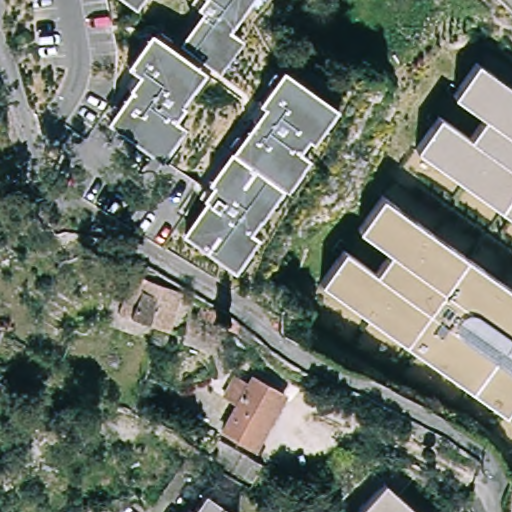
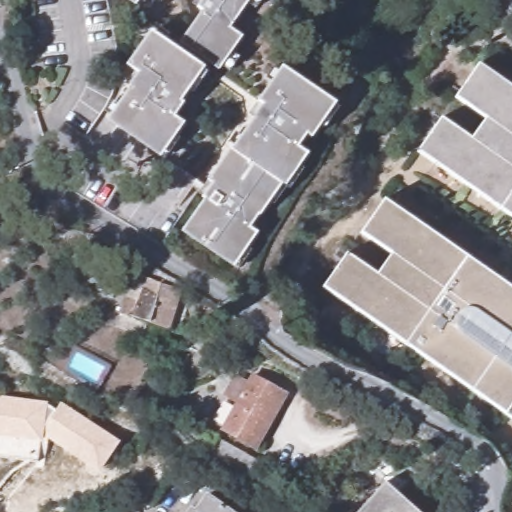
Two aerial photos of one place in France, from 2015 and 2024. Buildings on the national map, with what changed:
unchanged [(140,1),(137,0),(141,0),(140,1)]
unchanged [(220,65),(218,67),(182,44),(203,12),(196,7),(200,0),(261,0),(256,8),(245,2),(236,17),(237,18),(230,29),(239,35),(229,51),(239,58),(230,72),(220,65)]
unchanged [(170,160),(157,152),(113,123),(133,91),(130,89),(138,76),(129,69),(150,36),(195,65),(207,74),(194,94),(188,90),(181,101),(186,104),(177,117),(185,122),(177,135),(183,139),(170,160)]
unchanged [(470,137),(485,117),(456,97),(479,63),(512,86),(512,216),(418,151),(442,117),(470,137)]
unchanged [(241,269),(228,261),(186,233),(207,200),(203,197),(211,184),(209,182),(230,150),(231,150),(251,119),(249,118),(259,103),(257,101),(278,68),(322,97),(335,105),(322,125),(316,121),(308,134),(305,132),(297,145),(305,150),(297,163),(303,167),(290,187),(287,185),(275,204),(268,199),(259,214),(260,215),(251,228),(257,231),(247,246),(253,250),(241,269)]
unchanged [(325,286),(348,252),(377,272),(391,252),(362,232),(385,198),(512,287),(512,416),(325,286)]
unchanged [(116,316),(129,277),(178,294),(166,333),(116,316)]
demolished [(5,334),(0,340),(0,331),(5,334)]
unchanged [(237,404),(224,396),(236,374),(250,382),(254,375),(285,394),(254,446),(223,428),(237,404)]
new [(46,404),(55,412),(60,404),(117,443),(98,471),(41,433),(15,430),(15,436),(0,435),(0,399),(46,404)]
unchanged [(231,464),(240,447),(260,458),(250,474),(231,464)]
unchanged [(365,512),(396,487),(417,512),(365,512)]
unchanged [(230,512),(196,512),(207,496),(230,512)]
unchanged [(196,512),(190,512),(192,509),(196,512)]

